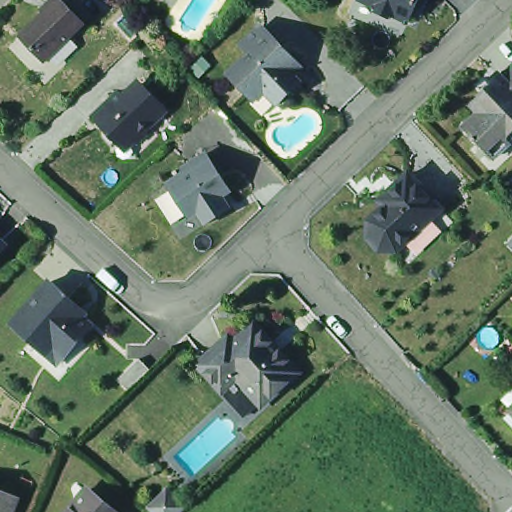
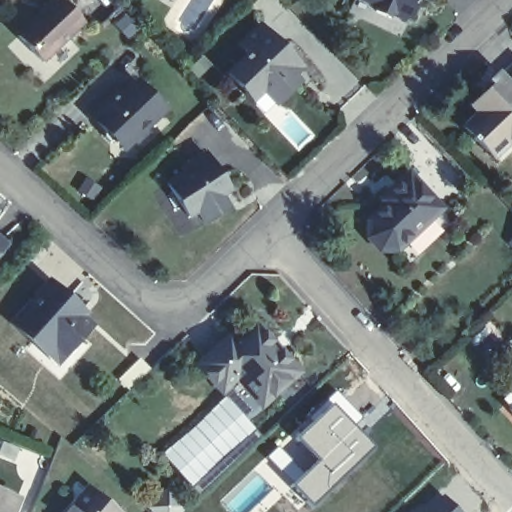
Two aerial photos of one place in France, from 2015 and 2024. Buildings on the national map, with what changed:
unchanged [(51,0),(68,0),(85,18),(45,57),(19,31),(51,0)]
unchanged [(246,0),(248,0),(247,1),(246,0)]
unchanged [(407,16),(374,0),(415,0),(407,16)]
unchanged [(253,96),(236,78),(256,59),(247,50),(266,30),(287,53),(290,51),(305,66),(310,73),(302,82),(307,88),(295,99),(295,98),(284,108),(274,118),(253,96)]
unchanged [(493,149),(486,142),(477,131),(474,133),(470,129),(472,127),(463,118),(479,104),(470,95),(483,83),(486,87),(497,77),(490,70),(498,63),(502,68),(512,58),(512,132),(493,149)]
unchanged [(127,85),(133,92),(150,77),(174,105),(155,120),(157,128),(149,136),(118,136),(114,131),(116,124),(102,108),(127,85)]
unchanged [(232,193),(225,198),(230,208),(203,222),(198,209),(187,214),(170,179),(212,154),(232,193)]
unchanged [(393,234),(391,232),(390,230),(385,234),(372,234),(367,228),(364,224),(365,211),(368,208),(365,204),(375,194),(370,189),(378,181),(385,174),(398,162),(432,197),(412,217),(393,234)]
unchanged [(444,210),(400,252),(388,239),(370,239),(359,226),(360,209),(365,204),(368,208),(365,211),(364,224),(367,228),(372,234),(385,234),(390,230),(391,232),(393,234),(412,217),(432,197),(444,210)]
unchanged [(0,251),(0,226),(12,237),(0,251)]
new [(508,244),(512,241),(512,248),(508,244)]
unchanged [(62,370),(31,342),(37,335),(17,316),(55,274),(86,302),(85,309),(95,318),(83,330),(91,337),(62,370)]
unchanged [(239,339),(260,320),(276,337),(285,346),(302,366),(268,396),(245,370),(229,384),(206,360),(212,354),(209,351),(226,336),(228,339),(235,334),(239,339)]
new [(139,357),(150,368),(127,391),(116,379),(139,357)]
new [(316,461),(295,438),(330,404),(327,400),(336,391),(363,419),(355,427),(375,447),(311,507),(290,486),(316,461)]
unchanged [(507,411),(512,407),(512,416),(507,411)]
new [(459,512),(409,512),(435,488),(459,512)]
unchanged [(113,512),(73,512),(88,492),(113,512)]
unchanged [(20,502),(17,512),(0,512),(0,494),(20,502)]
unchanged [(162,499),(174,500),(185,509),(182,512),(154,512),(152,510),(162,499)]

